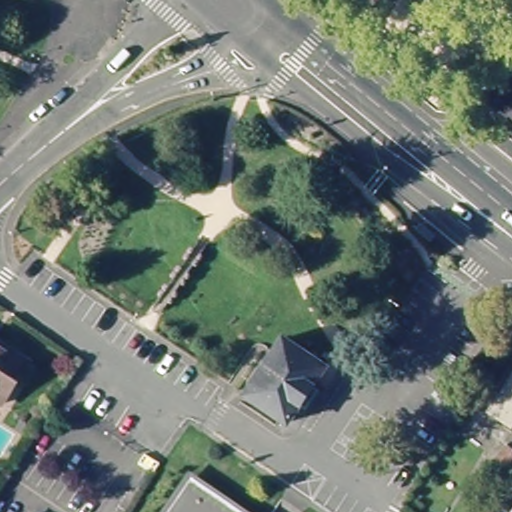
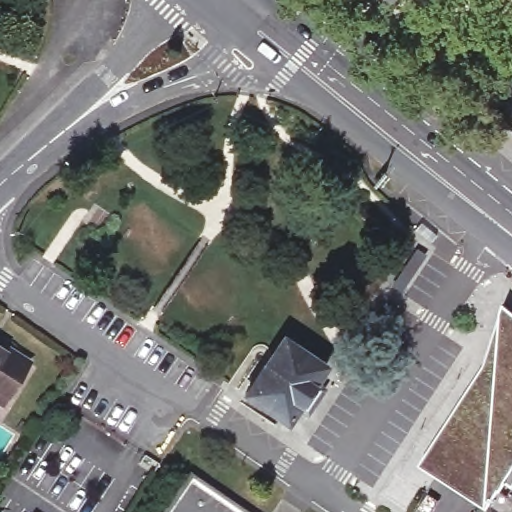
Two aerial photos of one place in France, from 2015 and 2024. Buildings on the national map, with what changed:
new [(420,251),(428,256),(403,292),(395,287),(420,251)]
new [(485,365),(504,304),(512,311),(512,481),(492,512),(423,463),(485,365)]
unchanged [(1,403),(0,402),(0,338),(31,359),(1,403)]
unchanged [(306,415),(295,408),(284,424),(241,395),(259,370),(280,340),(322,369),(311,385),(321,392),(306,415)]
demolished [(512,386),(512,417),(498,408),(512,386)]
demolished [(512,444),(512,473),(499,464),(512,444)]
unchanged [(512,481),(512,512),(491,512),(512,481)]
unchanged [(194,487),(231,512),(176,512),(194,487)]

